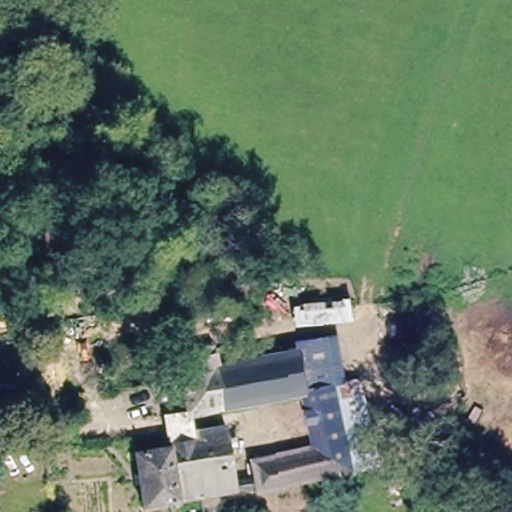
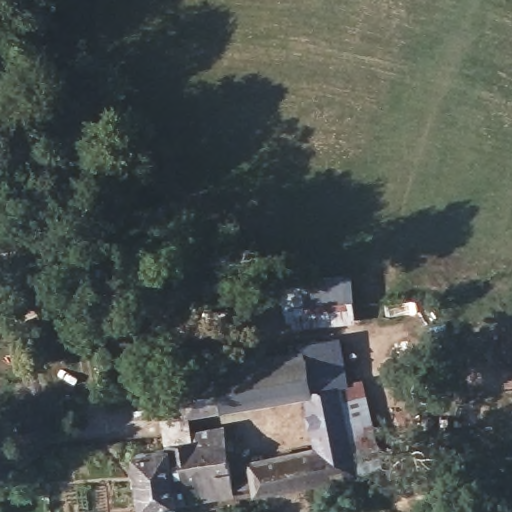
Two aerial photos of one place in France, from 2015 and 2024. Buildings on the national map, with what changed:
unchanged [(353,298),(356,321),(294,327),(290,306),(353,298)]
unchanged [(302,355),(299,340),(342,335),(349,382),(364,378),(385,467),(358,473),(356,460),(347,462),(328,388),(303,394),(295,356),(302,355)]
unchanged [(237,464),(311,452),(298,397),(173,413),(166,362),(202,356),(204,371),(295,356),(303,394),(328,388),(347,462),(356,460),(358,473),(242,492),(237,464)]
unchanged [(161,414),(173,413),(189,412),(192,433),(165,437),(161,414)]
unchanged [(149,507),(133,509),(125,454),(157,449),(156,438),(214,430),(224,495),(210,497),(162,503),(161,512),(150,512),(149,507)]

